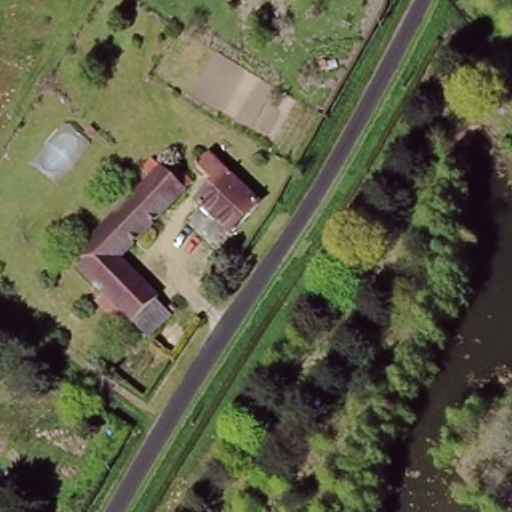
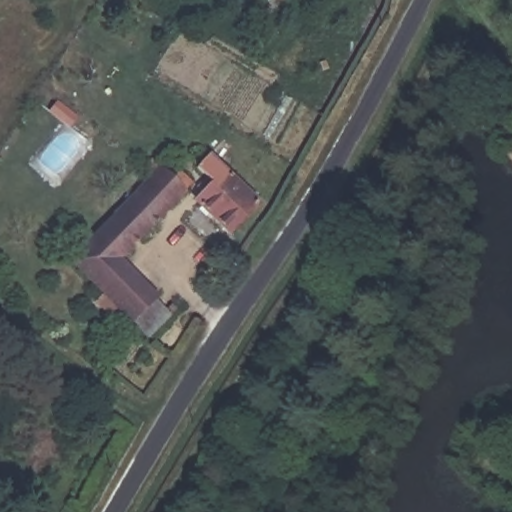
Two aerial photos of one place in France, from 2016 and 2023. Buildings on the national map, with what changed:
unchanged [(153,154),(172,172),(178,165),(191,178),(116,256),(150,290),(151,288),(155,292),(152,295),(170,312),(150,333),(122,307),(111,317),(95,299),(103,290),(70,257),(150,175),(141,166),(153,154)]
unchanged [(260,206),(230,236),(196,203),(215,185),(197,167),(208,157),(230,177),(260,206)]

